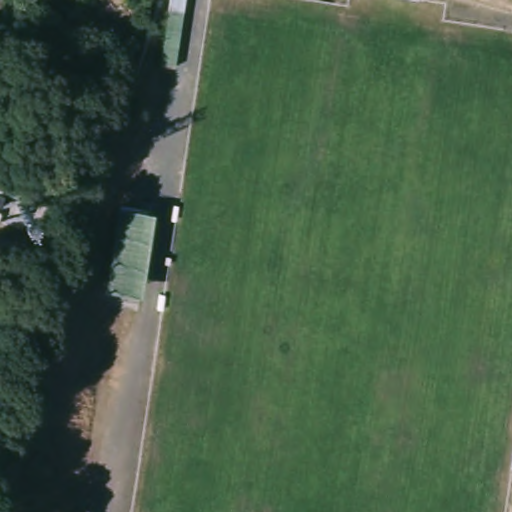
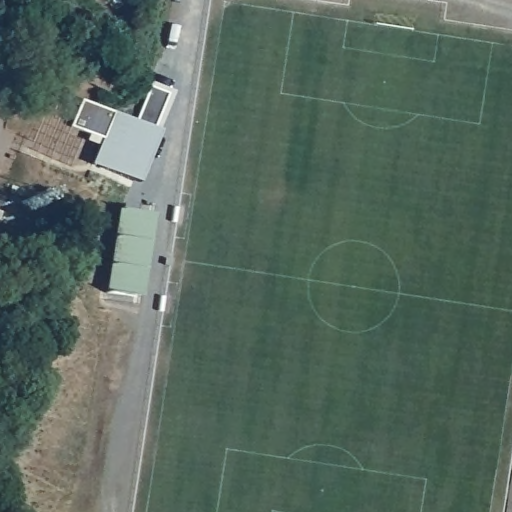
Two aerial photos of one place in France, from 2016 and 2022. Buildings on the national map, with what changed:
demolished [(183,11),(176,66),(161,64),(169,9),(183,11)]
new [(70,123),(81,96),(136,119),(151,84),(152,79),(176,89),(137,180),(132,179),(91,161),(98,143),(86,137),(89,130),(70,123)]
unchanged [(147,210),(134,293),(106,289),(118,206),(147,210)]

